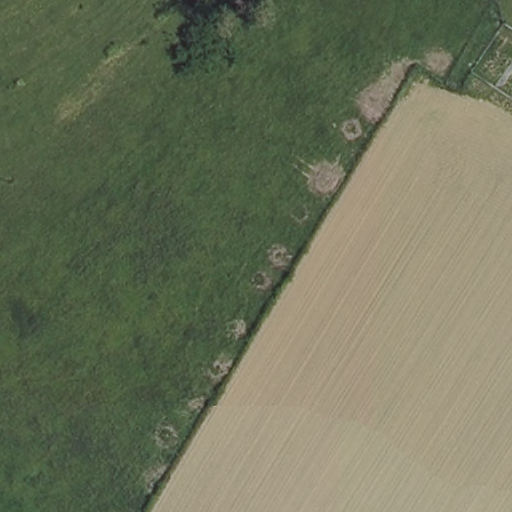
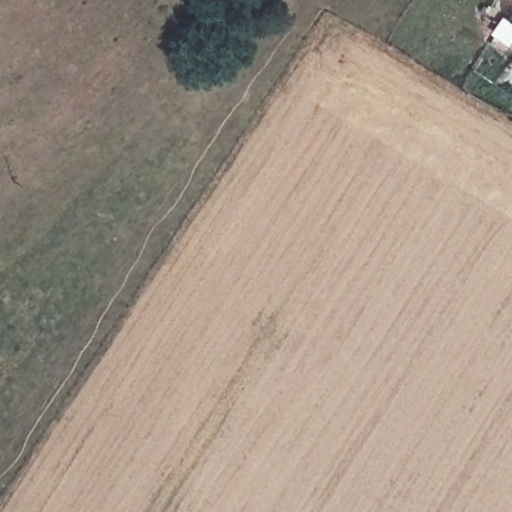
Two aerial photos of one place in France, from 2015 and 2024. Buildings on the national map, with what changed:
[]

